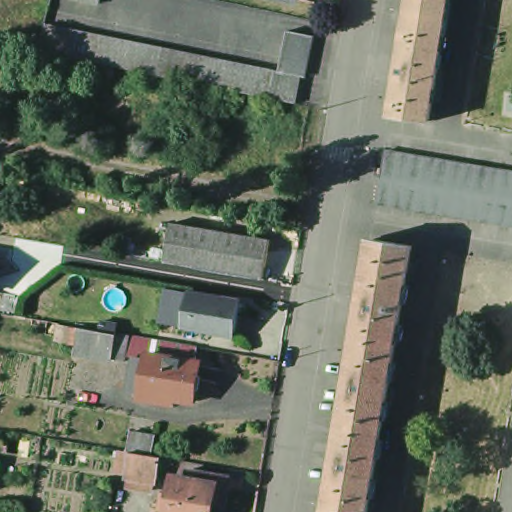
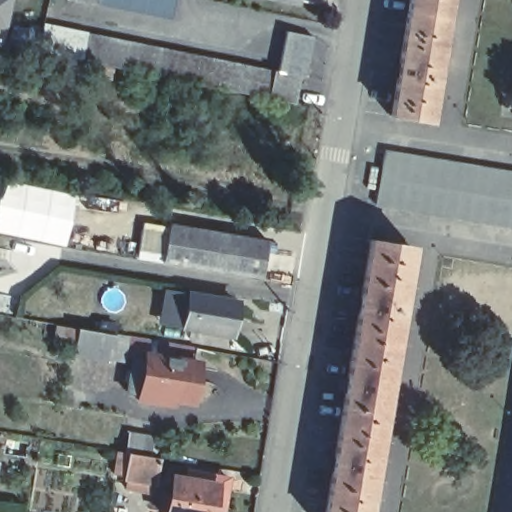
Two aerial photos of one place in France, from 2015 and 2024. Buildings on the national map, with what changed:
new [(2,26),(0,26),(0,0),(8,0),(2,26)]
unchanged [(97,4),(75,0),(97,0),(97,4)]
unchanged [(393,115),(411,0),(450,0),(432,121),(393,115)]
unchanged [(282,36),(307,41),(299,82),(297,81),(290,107),(265,102),(182,85),(34,56),(40,28),(271,76),(274,77),(282,36)]
unchanged [(373,203),(382,149),(512,172),(512,226),(373,203)]
new [(0,188),(2,178),(75,193),(67,246),(0,234),(0,188)]
unchanged [(169,216),(267,234),(261,275),(162,258),(169,216)]
unchanged [(410,244),(366,512),(323,512),(367,238),(410,244)]
unchanged [(220,304),(220,307),(237,310),(232,342),(181,333),(187,298),(220,304)]
unchanged [(112,353),(77,347),(78,340),(57,336),(60,320),(72,323),(82,324),(117,330),(112,353)]
unchanged [(163,400),(142,396),(143,389),(132,387),(137,353),(150,355),(150,349),(202,358),(195,398),(176,394),(175,402),(163,400)]
unchanged [(125,487),(127,476),(121,475),(111,473),(115,453),(125,454),(125,453),(158,459),(155,480),(152,480),(150,491),(125,487)]
unchanged [(178,490),(180,481),(199,485),(222,488),(221,498),(219,512),(163,512),(167,488),(178,490)]

